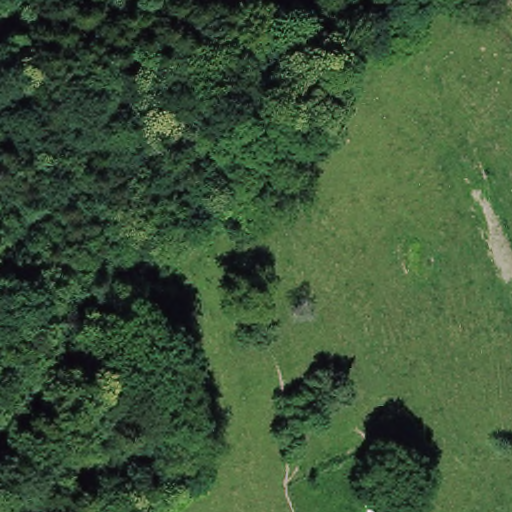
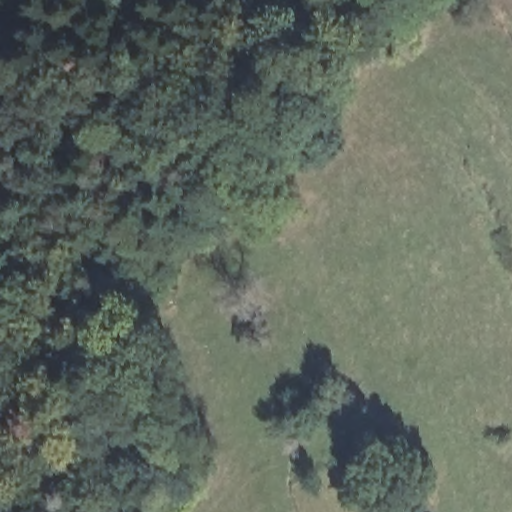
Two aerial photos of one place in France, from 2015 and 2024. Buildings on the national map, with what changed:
[]

